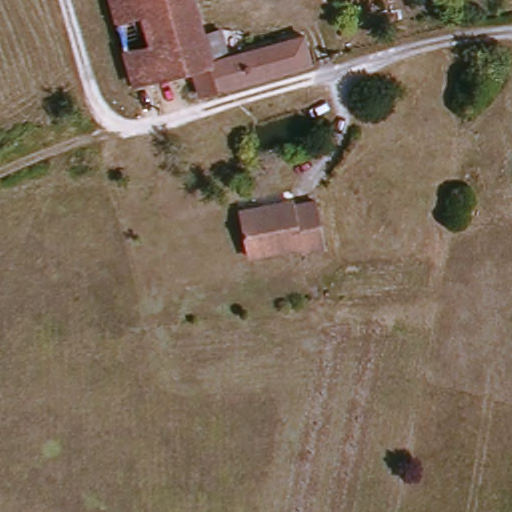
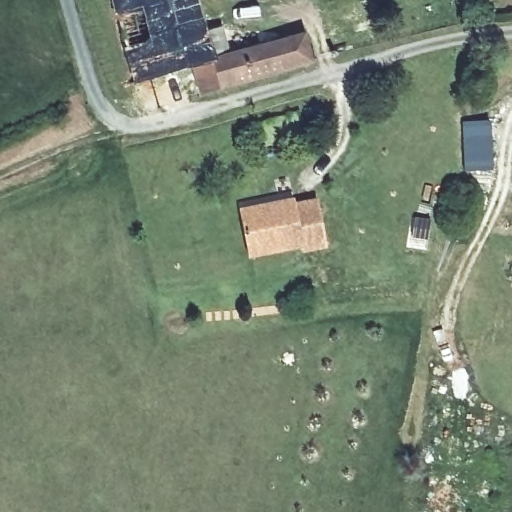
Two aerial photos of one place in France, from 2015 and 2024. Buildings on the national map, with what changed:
unchanged [(308,66),(199,100),(189,68),(134,83),(109,0),(192,0),(213,64),(299,35),(308,66)]
new [(494,169),(466,172),(463,123),(490,121),(494,169)]
unchanged [(329,247),(305,252),(304,247),(251,258),(242,214),(297,203),(298,208),(320,204),(329,247)]

